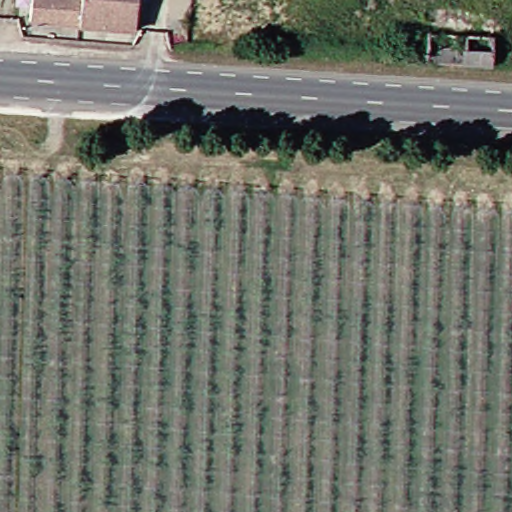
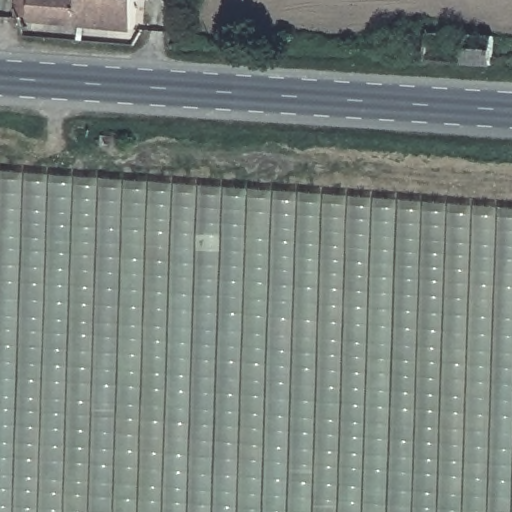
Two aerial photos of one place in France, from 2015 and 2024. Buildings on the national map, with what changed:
unchanged [(130,32),(27,25),(28,0),(131,0),(130,32)]
demolished [(421,76),(424,24),(489,28),(486,80),(421,76)]
new [(512,512),(0,512),(0,173),(512,210),(512,512)]

